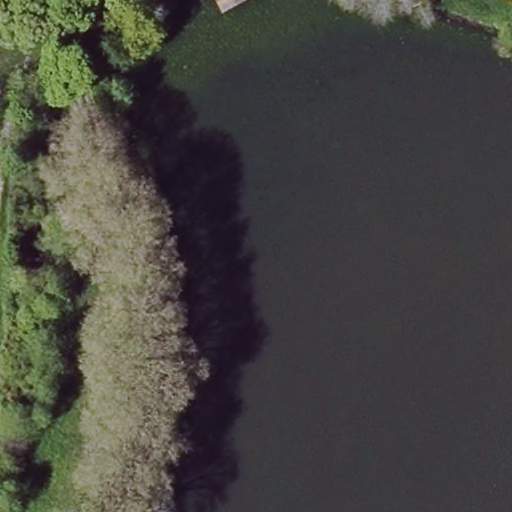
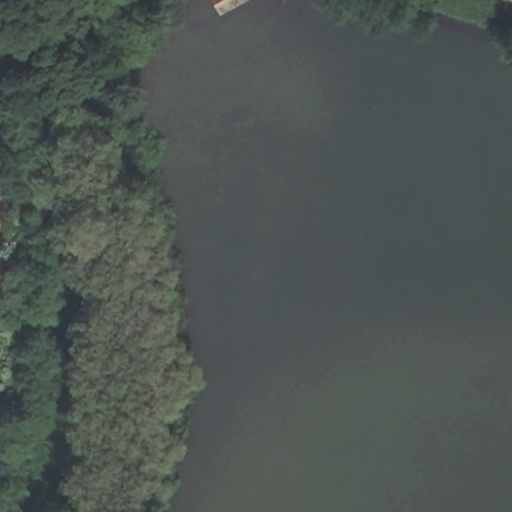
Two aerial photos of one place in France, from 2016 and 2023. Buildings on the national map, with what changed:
unchanged [(247,0),(224,11),(219,0),(247,0)]

